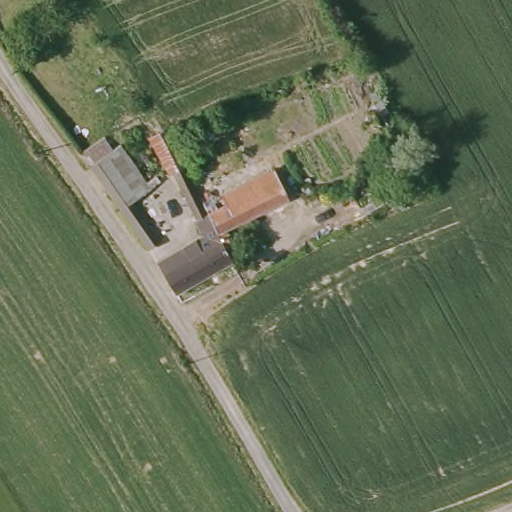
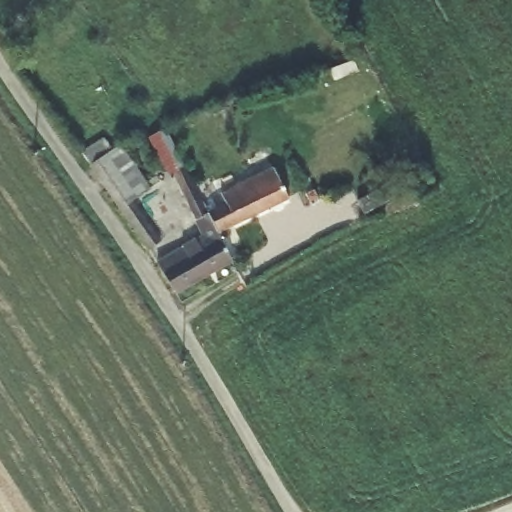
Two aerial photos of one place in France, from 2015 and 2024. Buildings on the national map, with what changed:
unchanged [(402,136),(383,147),(362,104),(377,95),(402,136)]
unchanged [(149,190),(131,202),(156,239),(142,252),(141,249),(111,205),(87,168),(76,151),(99,135),(109,147),(115,141),(126,153),(123,154),(149,190)]
unchanged [(161,264),(207,240),(176,184),(192,173),(204,195),(204,197),(217,220),(256,199),(248,188),(276,171),(294,202),(227,239),(237,259),(177,289),(161,264)]

